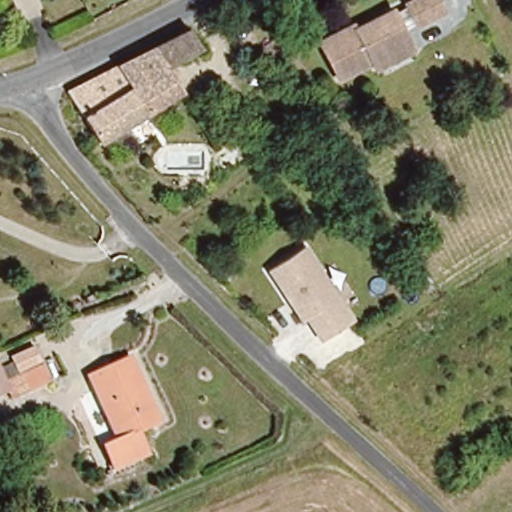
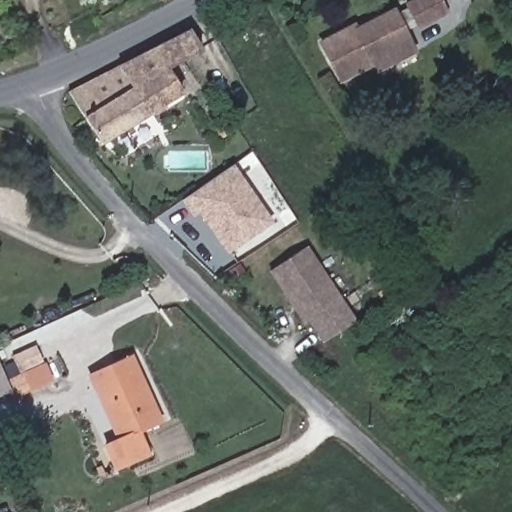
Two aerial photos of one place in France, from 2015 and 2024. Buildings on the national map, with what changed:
unchanged [(409,11),(408,10),(427,0),(438,0),(446,15),(418,30),(415,23),(409,11)]
unchanged [(376,72),(372,65),(340,80),(320,44),(353,27),(356,32),(394,13),(396,17),(402,29),(407,40),(413,53),(376,72)]
unchanged [(97,144),(67,94),(152,50),(186,31),(196,48),(162,68),(177,93),(97,144)]
unchanged [(277,40),(285,54),(266,65),(258,50),(277,40)]
new [(234,165),(254,195),(250,197),(258,209),(262,206),(272,220),(229,251),(201,210),(195,213),(185,199),(234,165)]
unchanged [(356,318),(325,340),(308,320),(302,322),(270,272),(310,247),(356,318)]
unchanged [(91,376),(132,358),(160,420),(139,430),(149,454),(117,468),(107,446),(120,440),(91,376)]
unchanged [(8,372),(40,360),(46,375),(15,388),(8,372)]

